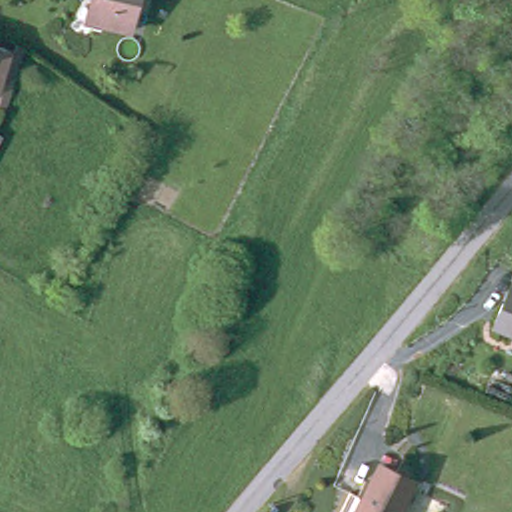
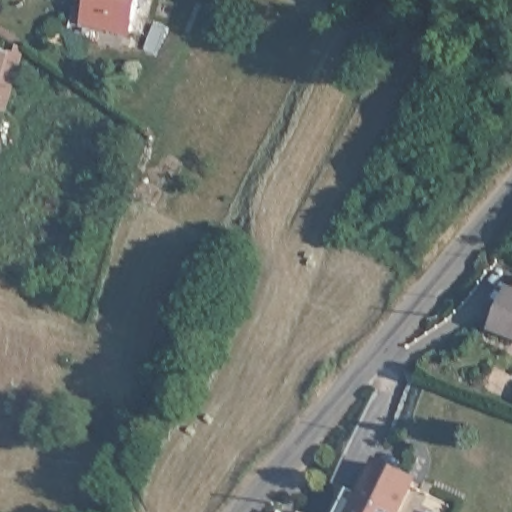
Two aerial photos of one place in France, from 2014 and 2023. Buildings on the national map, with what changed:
unchanged [(81,20),(86,0),(128,0),(121,29),(81,20)]
unchanged [(4,109),(0,107),(0,96),(1,93),(0,92),(0,46),(22,54),(4,109)]
unchanged [(490,326),(506,288),(512,290),(512,336),(490,326)]
unchanged [(396,512),(340,512),(351,488),(364,494),(374,474),(380,463),(412,479),(405,494),(396,512)]

